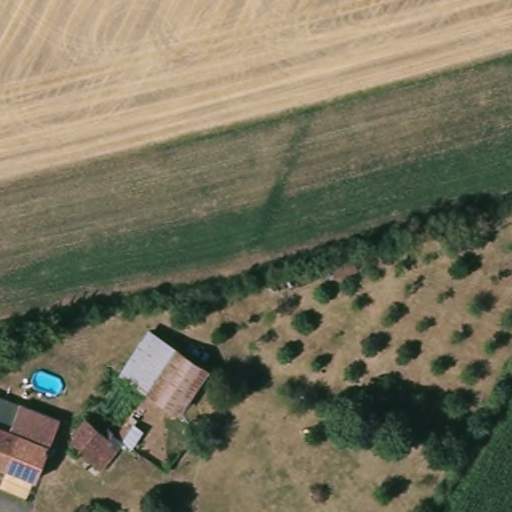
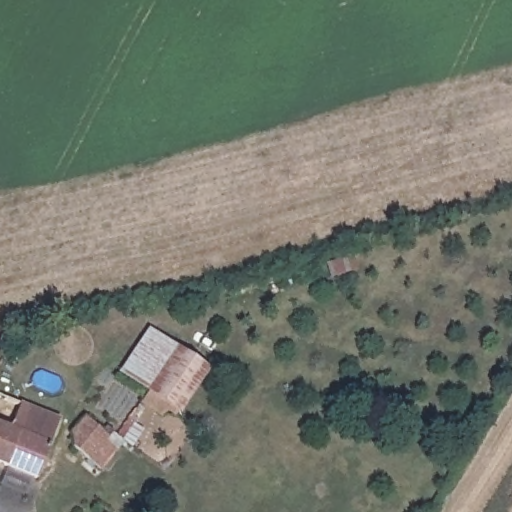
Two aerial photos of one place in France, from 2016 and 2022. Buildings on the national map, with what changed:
unchanged [(149,335),(210,375),(178,419),(121,382),(149,335)]
unchanged [(11,430),(52,448),(35,483),(0,469),(0,400),(21,408),(11,430)]
unchanged [(62,425),(52,448),(11,430),(21,408),(62,425)]
unchanged [(127,455),(104,480),(69,450),(90,421),(127,455)]

